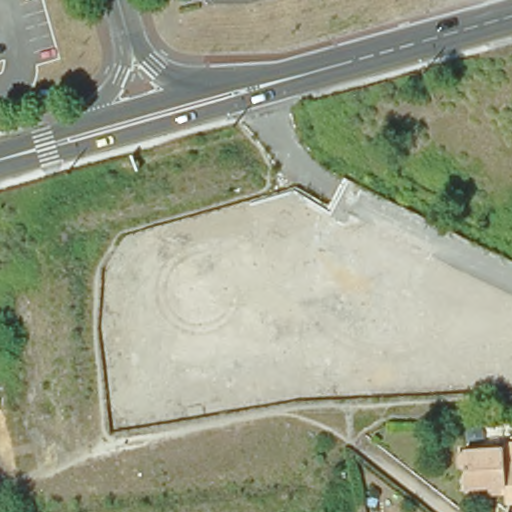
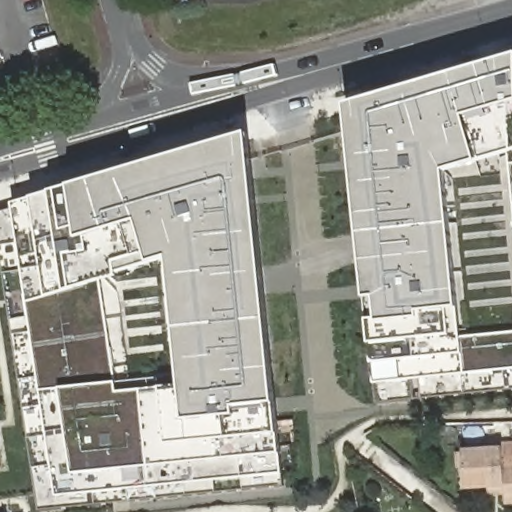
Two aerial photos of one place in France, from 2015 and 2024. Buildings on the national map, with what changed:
new [(377,403),(375,383),(373,364),(371,344),(368,319),(378,317),(376,298),(366,299),(345,103),(512,55),(512,389),(377,403)]
new [(59,189),(70,186),(248,133),(277,404),(280,434),(282,455),(283,473),(285,485),(38,510),(0,256),(0,210),(31,197),(50,191),(59,189)]
unchanged [(490,491),(490,485),(466,487),(464,449),(503,447),(504,455),(512,454),(512,502),(507,502),(506,491),(505,491),(490,491)]

